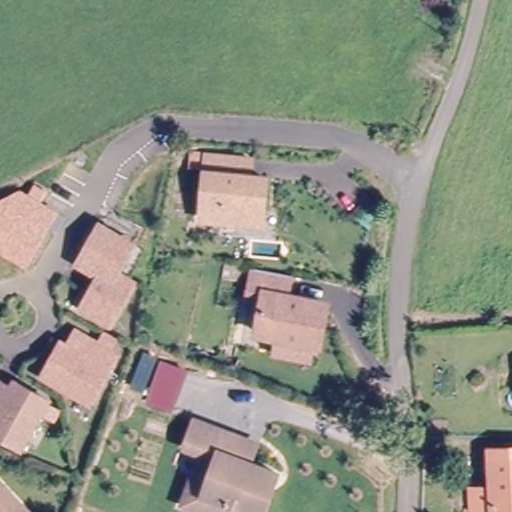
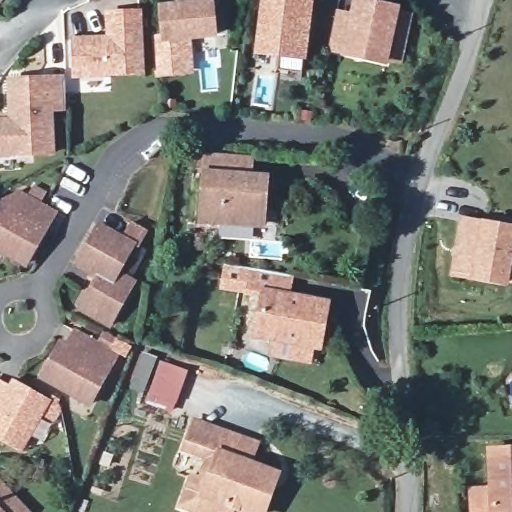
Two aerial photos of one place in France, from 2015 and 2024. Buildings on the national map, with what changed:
new [(209,0),(215,0),(217,37),(161,43),(158,4),(209,0)]
new [(307,59),(254,52),(261,0),(315,0),(307,59)]
new [(350,13),(352,0),(377,0),(401,4),(400,11),(413,14),(401,66),(391,63),(340,54),(326,50),(335,9),(350,13)]
new [(143,9),(146,74),(72,79),(70,37),(105,35),(104,11),(143,9)]
new [(156,77),(154,36),(160,35),(161,43),(192,39),(195,74),(156,77)]
new [(66,112),(54,112),(55,154),(0,158),(0,117),(8,117),(8,76),(64,75),(66,112)]
unchanged [(198,221),(201,157),(234,158),(233,176),(260,177),(258,223),(198,221)]
unchanged [(34,182),(48,190),(41,201),(58,210),(26,268),(0,254),(0,198),(20,187),(28,192),(34,182)]
new [(512,226),(512,268),(508,288),(451,277),(461,217),(512,226)]
unchanged [(76,310),(78,309),(94,278),(75,266),(99,222),(138,242),(123,273),(137,281),(113,329),(76,310)]
unchanged [(285,358),(288,341),(268,338),(274,297),(258,295),(261,273),(296,277),(293,298),(331,302),(326,346),(324,363),(285,358)]
unchanged [(94,402),(43,380),(60,343),(66,346),(74,330),(106,345),(118,350),(94,402)]
unchanged [(188,369),(173,411),(145,401),(161,358),(188,369)]
unchanged [(25,449),(0,438),(0,384),(8,388),(11,381),(48,398),(25,449)]
unchanged [(201,479),(217,485),(226,462),(193,451),(203,424),(248,439),(265,445),(258,465),(283,474),(275,496),(269,512),(255,512),(244,507),(242,512),(203,512),(192,507),(201,479)]
unchanged [(480,512),(480,457),(512,457),(512,512),(480,512)]
unchanged [(0,512),(0,480),(31,512),(0,512)]

